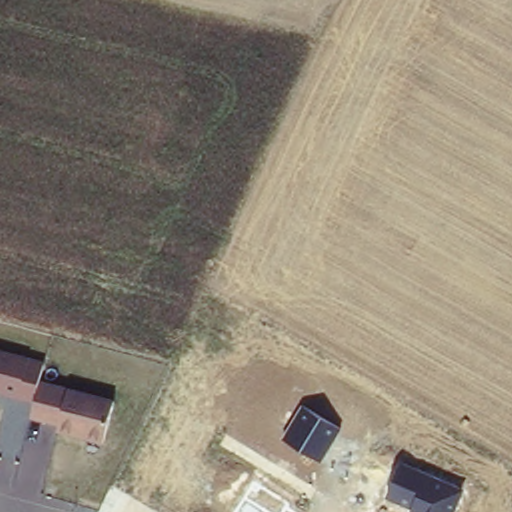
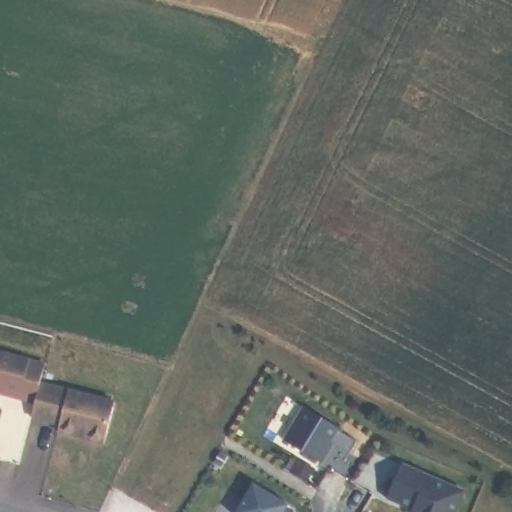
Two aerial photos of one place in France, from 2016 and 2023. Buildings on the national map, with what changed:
unchanged [(44,363),(41,375),(70,385),(70,386),(114,398),(104,441),(59,431),(60,425),(32,419),(36,402),(0,391),(0,352),(44,363)]
unchanged [(321,461),(282,439),(303,405),(342,428),(321,461)]
unchanged [(455,512),(410,512),(411,510),(386,500),(401,460),(465,488),(455,512)]
new [(254,485),(285,503),(282,507),(290,512),(237,512),(254,485)]

